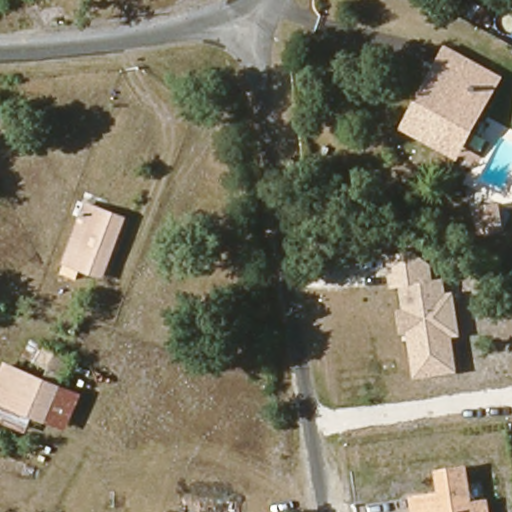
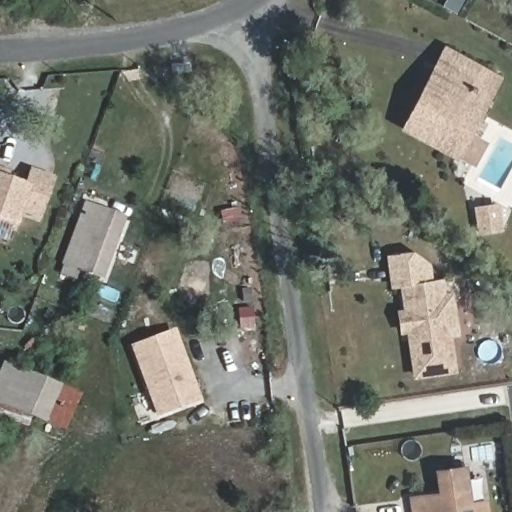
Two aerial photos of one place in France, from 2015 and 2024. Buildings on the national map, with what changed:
unchanged [(439,66),(447,50),(498,78),(490,94),(439,66)]
unchanged [(446,150),(407,129),(439,66),(490,94),(482,110),(469,134),(457,156),(446,150)]
new [(41,220),(24,213),(18,229),(0,223),(0,167),(12,171),(11,178),(26,183),(31,168),(56,176),(41,220)]
unchanged [(102,272),(99,271),(67,259),(90,206),(123,222),(102,272)]
unchanged [(501,229),(482,232),(480,220),(499,217),(501,229)]
unchanged [(413,380),(407,335),(401,336),(397,310),(404,309),(401,288),(391,288),(386,256),(411,252),(432,263),(435,279),(445,278),(447,293),(456,291),(462,336),(453,336),(458,373),(413,380)]
new [(157,417),(131,346),(179,329),(203,400),(157,417)]
unchanged [(0,423),(0,382),(7,366),(24,373),(36,347),(70,361),(59,388),(80,398),(66,431),(45,422),(33,417),(25,434),(0,423)]
unchanged [(414,496),(443,492),(440,470),(467,466),(472,502),(487,499),(489,512),(416,512),(414,496)]

